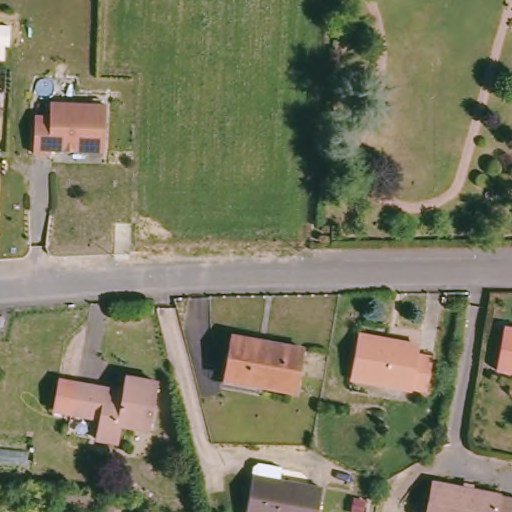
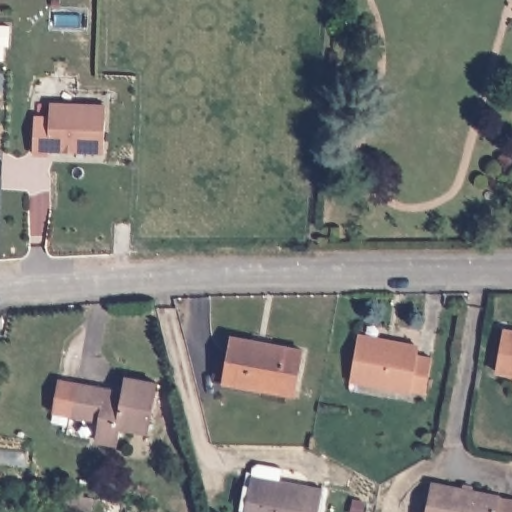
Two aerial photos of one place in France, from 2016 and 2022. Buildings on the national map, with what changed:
unchanged [(103,107),(102,152),(69,151),(69,147),(64,147),(64,151),(47,150),(47,155),(31,154),(32,117),(47,117),(47,105),(103,107)]
unchanged [(113,247),(115,215),(130,216),(129,247),(113,247)]
unchanged [(3,328),(0,329),(0,320),(3,320),(3,328)]
unchanged [(493,366),(500,324),(512,326),(512,369),(493,366)]
unchanged [(415,351),(429,353),(422,387),(348,375),(355,332),(416,342),(415,351)]
unchanged [(227,333),(300,347),(293,388),(220,376),(227,333)]
unchanged [(510,388),(512,376),(512,388),(510,388)]
unchanged [(77,385),(107,391),(107,394),(123,397),(126,380),(158,386),(150,431),(122,427),(119,443),(97,440),(101,421),(72,416),(77,385)]
unchanged [(314,512),(242,512),(248,473),(318,486),(314,512)]
unchanged [(497,487),(512,491),(512,512),(422,512),(428,473),(497,487)]

